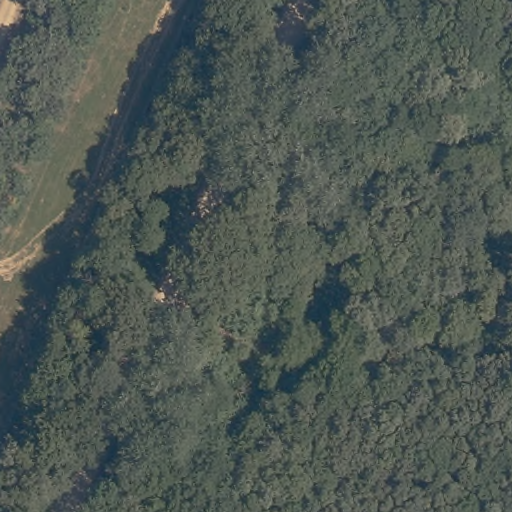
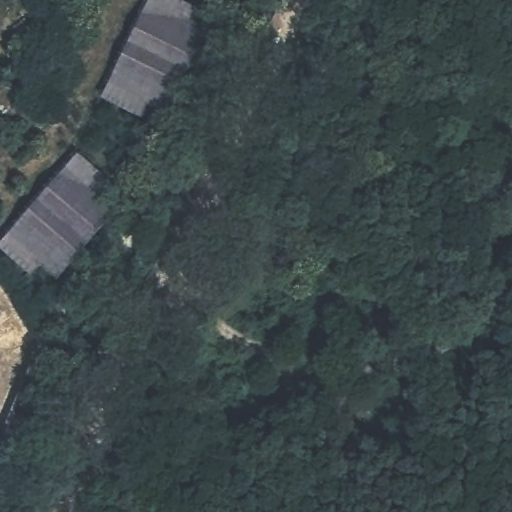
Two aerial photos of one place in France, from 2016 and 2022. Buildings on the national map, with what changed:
new [(197,59),(183,89),(169,119),(149,100),(141,119),(100,97),(112,73),(122,56),(127,42),(136,30),(142,13),(148,0),(178,0),(197,9),(191,22),(212,32),(197,59)]
new [(100,195),(117,212),(96,235),(85,245),(75,256),(55,282),(37,265),(29,276),(0,250),(0,242),(15,225),(27,212),(36,200),(47,189),(57,175),(76,154),(109,184),(100,195)]

